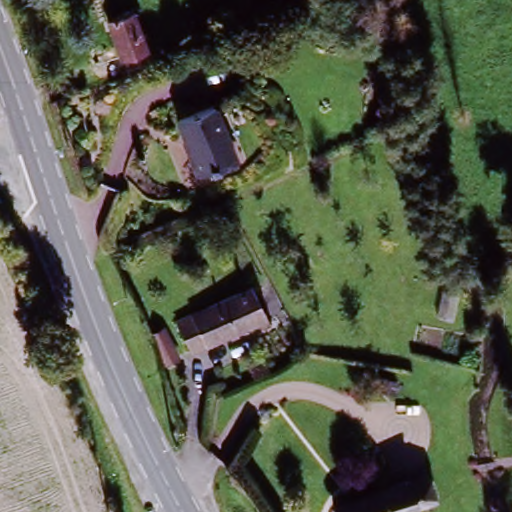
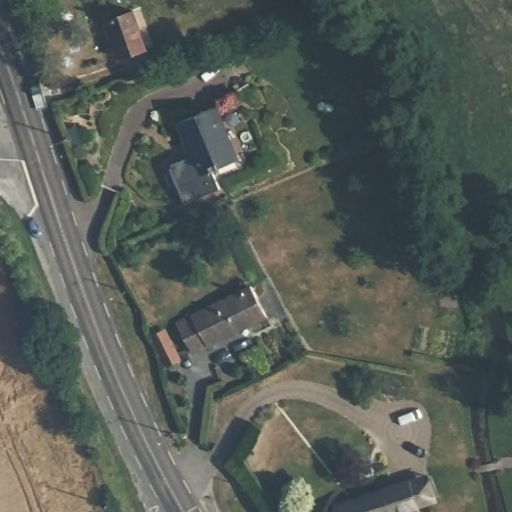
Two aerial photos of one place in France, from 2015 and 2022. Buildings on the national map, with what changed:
unchanged [(151,52),(125,62),(111,24),(136,15),(151,52)]
unchanged [(221,168),(199,176),(189,156),(192,151),(189,145),(186,142),(178,122),(220,107),(238,152),(219,162),(221,168)]
unchanged [(180,326),(196,318),(253,290),(269,321),(211,349),(196,357),(180,326)]
unchanged [(166,330),(181,361),(164,370),(151,338),(166,330)]
unchanged [(427,468),(443,506),(423,512),(333,512),(331,503),(427,468)]

